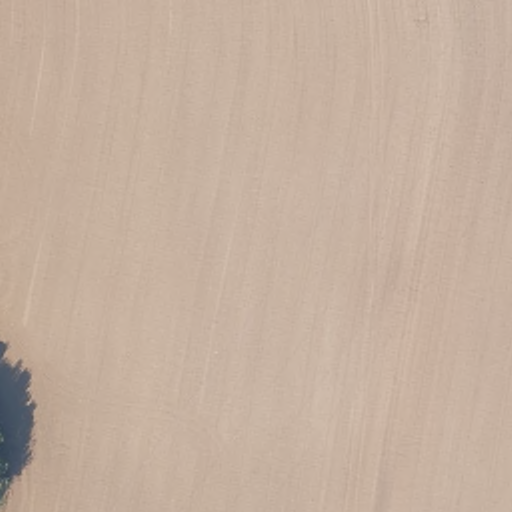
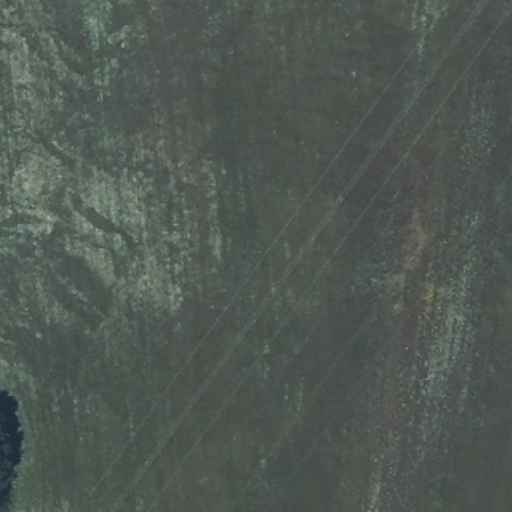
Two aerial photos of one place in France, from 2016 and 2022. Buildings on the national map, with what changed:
[]

